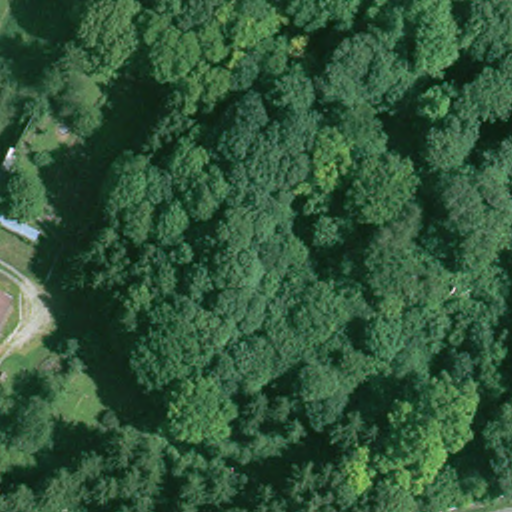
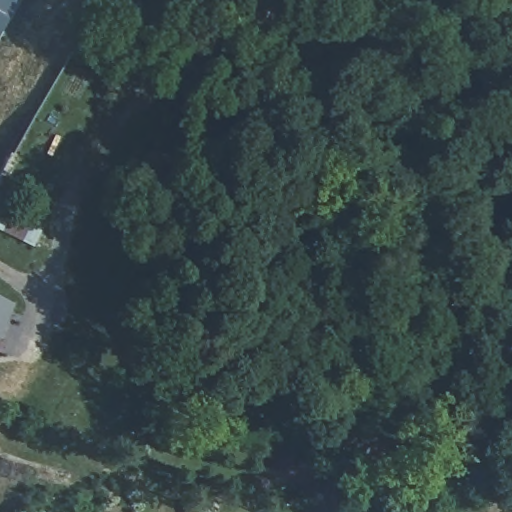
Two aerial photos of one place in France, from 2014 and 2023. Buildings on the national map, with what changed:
new [(0,37),(0,0),(19,0),(0,37)]
unchanged [(8,307),(0,323),(0,304),(8,307)]

